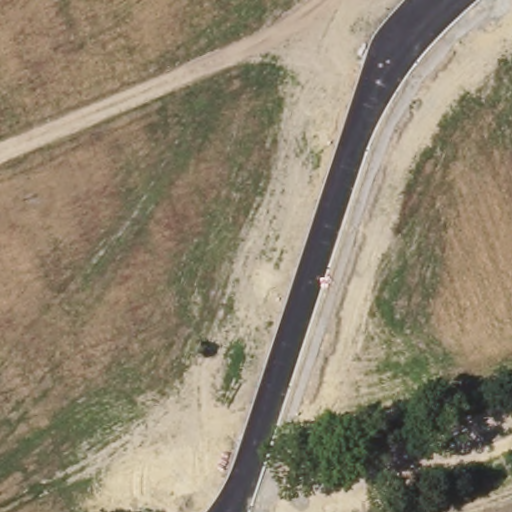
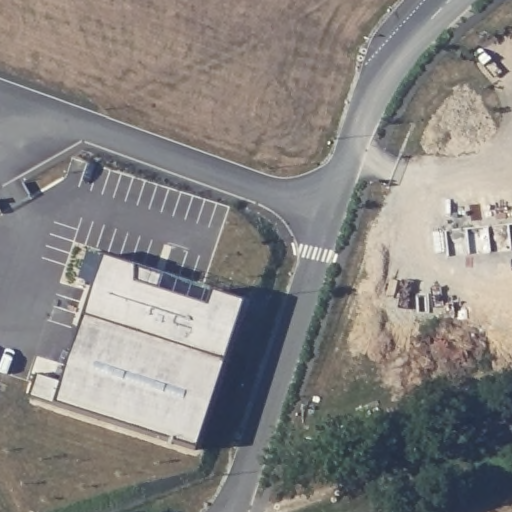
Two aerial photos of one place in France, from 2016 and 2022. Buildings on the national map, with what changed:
new [(162,276),(157,291),(203,306),(208,292),(243,304),(195,449),(52,402),(28,395),(35,373),(59,381),(101,255),(162,276)]

